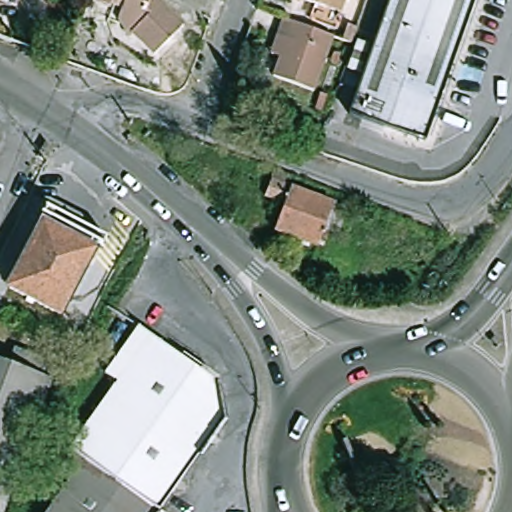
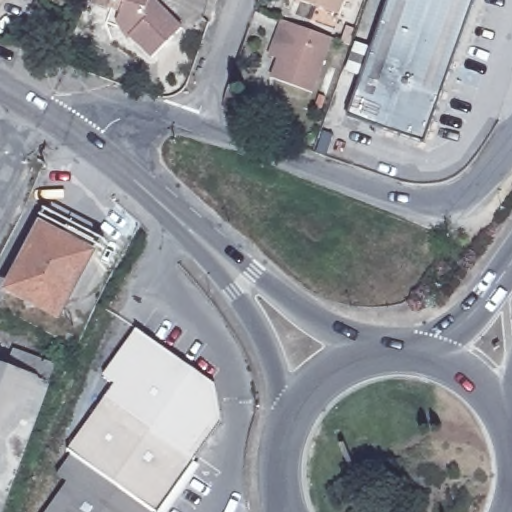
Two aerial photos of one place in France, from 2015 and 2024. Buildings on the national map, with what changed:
unchanged [(113,14),(93,7),(95,0),(117,0),(113,14)]
unchanged [(117,26),(119,20),(125,2),(126,0),(156,0),(186,28),(157,59),(134,36),(131,39),(117,26)]
unchanged [(125,2),(121,0),(126,0),(125,2)]
unchanged [(345,16),(305,2),(298,0),(350,0),(345,16)]
unchanged [(362,34),(376,39),(390,0),(476,0),(429,133),(352,106),(366,67),(351,62),(362,34)]
unchanged [(355,35),(347,32),(352,17),(360,20),(355,35)]
unchanged [(332,39),(314,93),(269,77),(275,60),(264,56),(277,20),(283,22),(326,37),(332,39)]
demolished [(349,207),(340,231),(331,228),(326,242),(322,241),(321,242),(278,225),(288,200),(268,192),(274,177),(349,207)]
unchanged [(38,228),(91,255),(61,316),(7,289),(38,228)]
unchanged [(48,512),(71,480),(59,472),(75,450),(72,447),(117,384),(105,376),(139,327),(220,384),(227,419),(161,512),(48,512)]
unchanged [(13,350),(51,364),(0,501),(0,366),(6,369),(13,350)]

